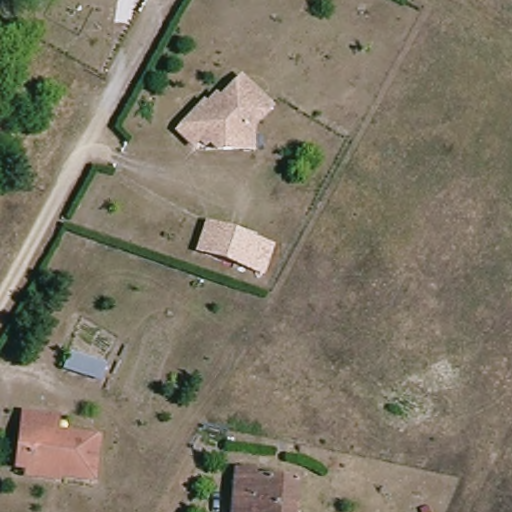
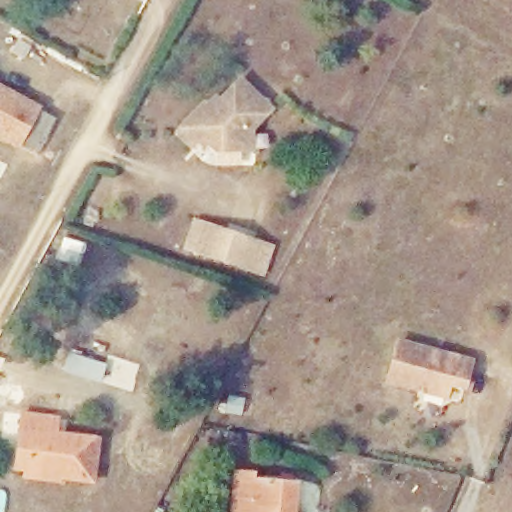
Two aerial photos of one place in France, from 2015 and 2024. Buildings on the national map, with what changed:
unchanged [(235,148),(210,147),(196,137),(186,145),(175,131),(200,105),(204,109),(211,98),(219,103),(234,81),(265,109),(247,130),(245,148),(235,148)]
new [(0,84),(41,106),(18,147),(0,138),(0,84)]
unchanged [(205,221),(273,245),(264,275),(195,252),(205,221)]
new [(475,357),(465,391),(451,388),(448,400),(385,383),(397,337),(475,357)]
unchanged [(15,420),(50,421),(50,441),(89,443),(86,482),(14,485),(15,420)]
unchanged [(235,512),(237,472),(264,470),(265,483),(297,482),(297,512),(235,512)]

